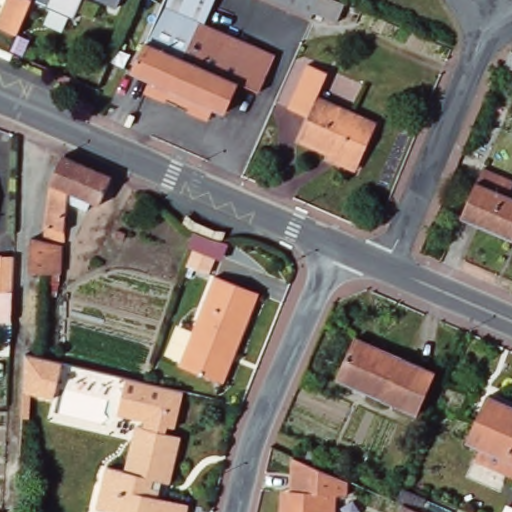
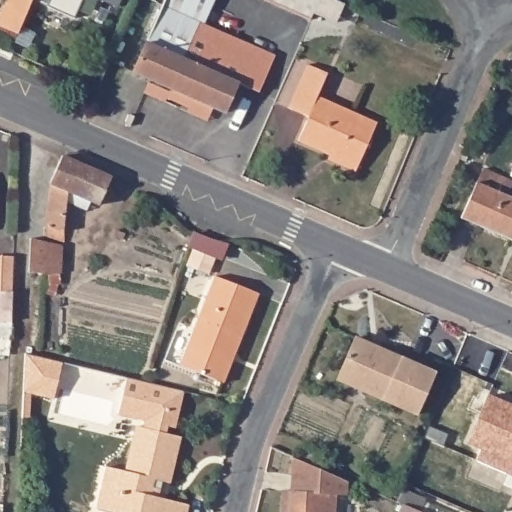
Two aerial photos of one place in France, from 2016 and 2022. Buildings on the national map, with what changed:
unchanged [(0,26),(0,16),(7,0),(32,0),(17,33),(0,26)]
unchanged [(35,0),(51,0),(48,6),(35,0)]
unchanged [(103,0),(121,0),(118,6),(103,0)]
unchanged [(259,92),(238,83),(146,42),(164,0),(215,0),(204,23),(275,55),(259,92)]
unchanged [(332,22),(310,12),(307,20),(262,0),(332,0),(340,3),(332,22)]
unchanged [(144,92),(150,79),(133,71),(146,42),(238,83),(225,112),(213,107),(208,120),(144,92)]
unchanged [(504,69),(512,51),(512,72),(504,69)]
unchanged [(330,158),(332,154),(298,139),(308,116),(288,107),(307,63),(328,73),(318,96),(377,122),(359,163),(356,170),(330,158)]
unchanged [(130,114),(134,116),(130,126),(125,124),(130,114)]
unchanged [(117,177),(104,206),(96,202),(92,210),(72,201),(69,242),(49,237),(53,199),(55,183),(67,155),(117,177)]
unchanged [(506,190),(512,193),(512,242),(456,217),(478,167),(509,181),(506,190)]
unchanged [(67,245),(65,274),(34,272),(36,238),(67,245)]
unchanged [(0,327),(0,246),(14,246),(13,281),(12,312),(11,327),(0,327)]
unchanged [(194,253),(215,261),(208,278),(188,270),(194,253)]
unchanged [(259,298),(224,387),(180,370),(215,281),(259,298)]
unchanged [(436,372),(418,414),(337,380),(355,337),(436,372)]
unchanged [(22,417),(22,406),(23,391),(25,353),(62,362),(54,398),(30,393),(29,417),(22,417)]
unchanged [(174,426),(169,425),(167,433),(181,437),(166,499),(189,504),(188,512),(113,512),(96,508),(107,466),(125,470),(136,425),(144,427),(146,419),(118,412),(126,377),(144,381),(182,391),(184,391),(174,426)]
unchanged [(512,406),(512,476),(475,460),(481,447),(467,441),(487,395),(512,406)]
unchanged [(290,489),(293,457),(349,480),(348,495),(337,494),(336,512),(281,512),(282,490),(290,489)]
unchanged [(402,503),(397,501),(403,487),(426,497),(421,511),(423,512),(399,512),(402,503)]
unchanged [(507,506),(512,509),(512,512),(505,512),(507,506)]

